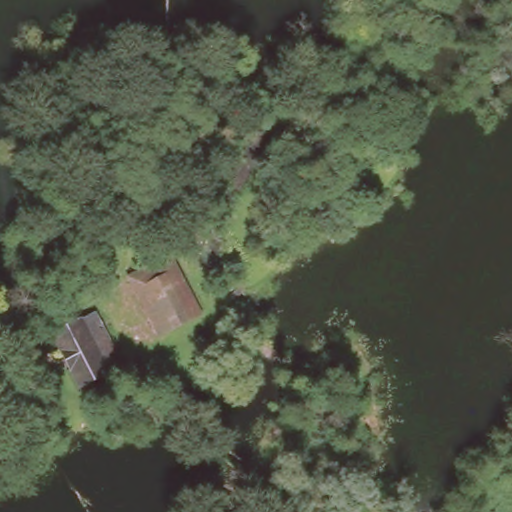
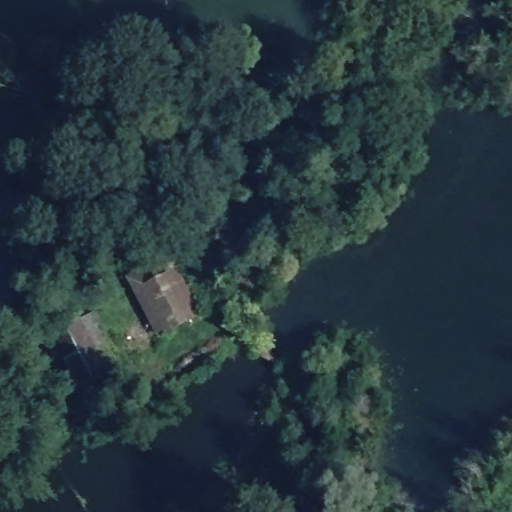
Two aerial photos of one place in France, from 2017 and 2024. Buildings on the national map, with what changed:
unchanged [(174,256),(200,317),(158,331),(134,282),(174,256)]
unchanged [(96,310),(127,366),(82,390),(51,335),(96,310)]

